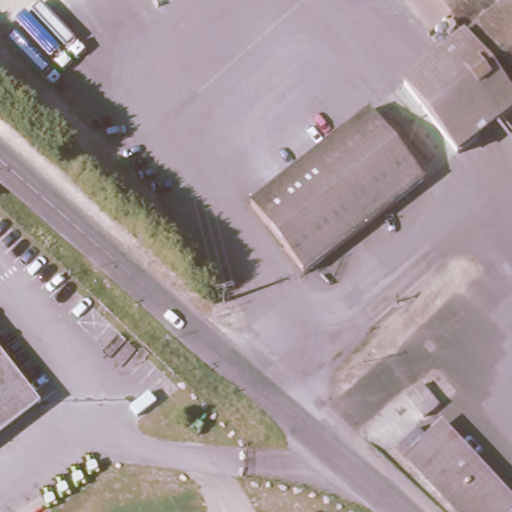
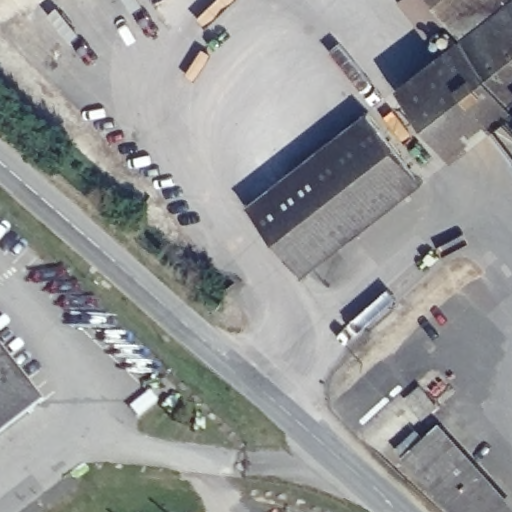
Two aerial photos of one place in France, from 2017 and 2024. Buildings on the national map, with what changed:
unchanged [(461,34),(435,0),(512,0),(512,107),(491,123),(455,151),(400,80),(461,34)]
unchanged [(247,200),(365,108),(420,178),(301,270),(247,200)]
unchanged [(40,402),(0,433),(0,350),(40,402)]
unchanged [(420,414),(404,394),(419,381),(426,376),(436,389),(430,394),(435,402),(420,414)]
unchanged [(435,433),(506,512),(451,512),(405,461),(435,433)]

